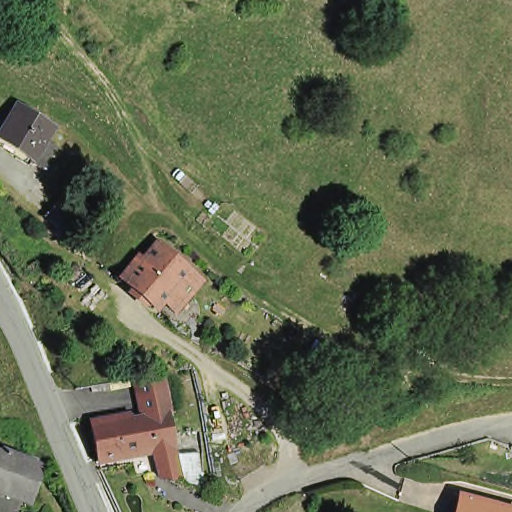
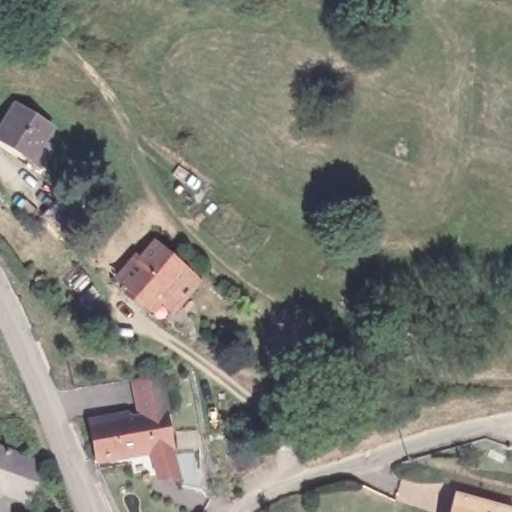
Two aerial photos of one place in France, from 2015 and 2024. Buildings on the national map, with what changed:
unchanged [(21,163),(0,149),(0,121),(7,112),(14,102),(47,125),(39,136),(51,144),(49,147),(35,166),(24,159),(21,163)]
unchanged [(47,211),(67,190),(86,208),(67,229),(47,211)]
unchanged [(134,263),(138,265),(154,248),(197,286),(165,322),(118,281),(134,263)]
unchanged [(178,487),(177,482),(154,480),(148,452),(136,455),(95,464),(86,423),(128,414),(136,413),(134,403),(129,380),(159,375),(164,396),(167,409),(163,410),(171,448),(191,444),(198,483),(178,487)]
unchanged [(28,507),(11,501),(0,497),(0,455),(25,465),(41,471),(28,507)]
unchanged [(502,505),(512,508),(512,512),(453,512),(458,494),(502,505)]

